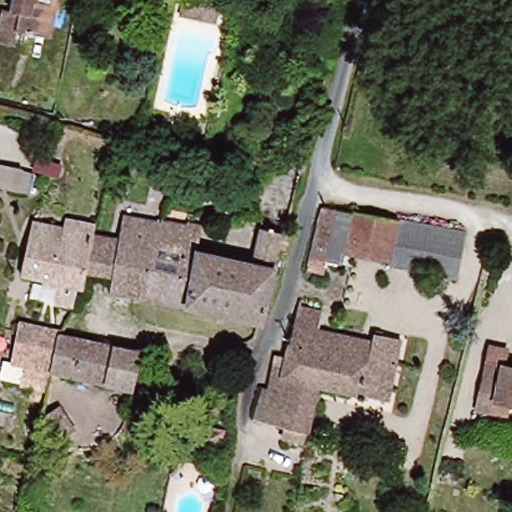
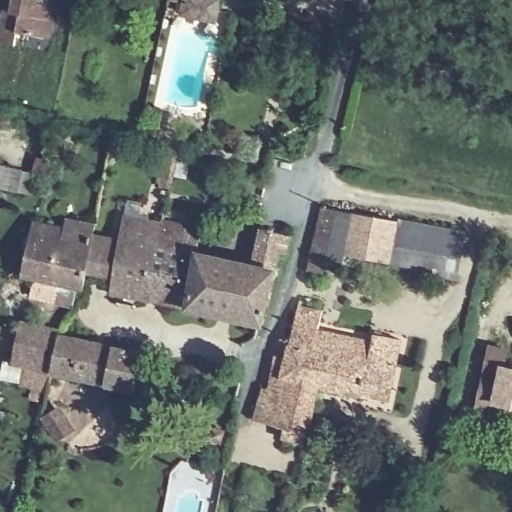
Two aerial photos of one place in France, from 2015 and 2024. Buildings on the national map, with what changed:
unchanged [(19,30),(16,41),(0,38),(0,29),(4,9),(13,10),(15,0),(55,0),(48,36),(19,30)]
unchanged [(54,181),(26,176),(16,174),(20,153),(31,156),(57,159),(54,181)]
unchanged [(263,322),(146,300),(159,226),(161,206),(204,213),(198,243),(245,252),(251,224),(296,233),(293,253),(276,254),(263,322)]
unchanged [(319,206),(346,212),(339,247),(349,249),(345,266),(325,262),(323,272),(306,269),(319,206)]
unchanged [(384,221),(378,255),(349,249),(339,247),(346,212),(384,221)]
unchanged [(60,303),(62,284),(25,279),(33,224),(61,227),(64,219),(94,225),(91,241),(84,289),(78,306),(60,303)]
unchanged [(111,294),(119,246),(124,219),(159,226),(146,300),(111,294)]
unchanged [(448,276),(377,261),(378,255),(384,221),(458,236),(448,276)]
unchanged [(111,294),(84,289),(91,241),(119,246),(111,294)]
unchanged [(322,308),(317,331),(336,335),(326,385),(316,430),(261,418),(267,389),(277,392),(298,304),(322,308)]
unchanged [(386,394),(326,385),(336,335),(374,342),(377,329),(399,333),(386,394)]
unchanged [(73,375),(56,372),(51,388),(30,384),(37,335),(44,330),(65,333),(80,338),(103,342),(139,349),(133,386),(73,375)]
unchanged [(477,411),(479,400),(490,344),(510,346),(506,365),(512,366),(512,402),(508,401),(506,416),(477,411)]

